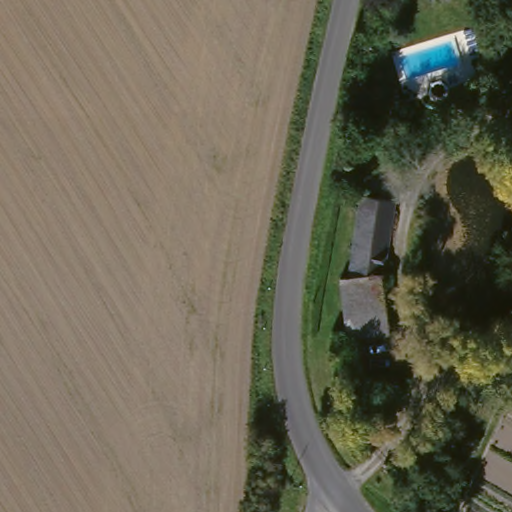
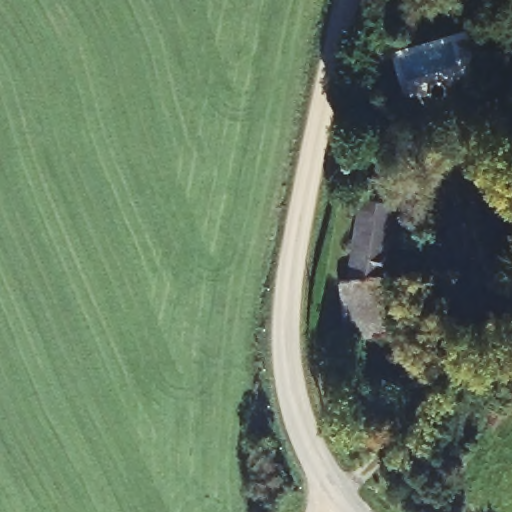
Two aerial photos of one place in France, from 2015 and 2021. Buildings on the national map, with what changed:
unchanged [(512,126),(512,139),(507,127),(512,126)]
unchanged [(388,201),(382,260),(375,269),(382,332),(378,333),(341,339),(332,278),(340,276),(351,194),(388,201)]
unchanged [(375,429),(380,442),(366,444),(363,432),(375,429)]

